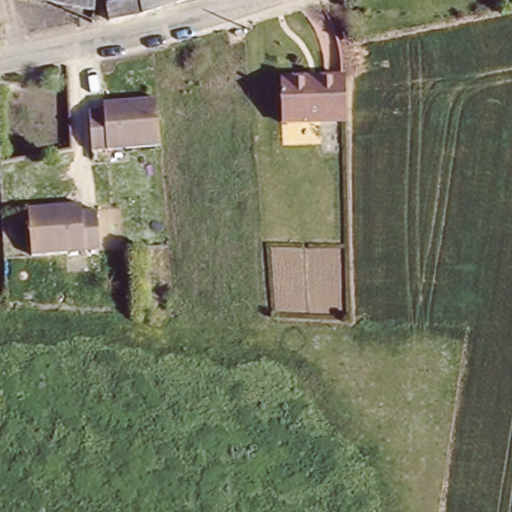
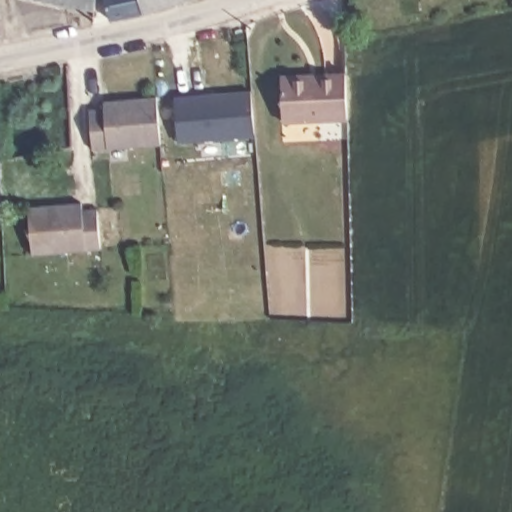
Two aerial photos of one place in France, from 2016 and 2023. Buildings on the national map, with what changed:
unchanged [(90,6),(54,0),(91,0),(90,6)]
unchanged [(145,12),(110,18),(103,0),(183,0),(145,12)]
unchanged [(285,127),(282,82),(281,74),(348,68),(349,77),(349,122),(285,127)]
new [(250,92),(254,137),(177,142),(174,98),(250,92)]
unchanged [(92,149),(90,110),(104,109),(104,101),(126,99),(157,97),(161,144),(126,147),(108,147),(92,149)]
unchanged [(90,199),(90,206),(105,205),(107,246),(38,249),(37,202),(90,199)]

